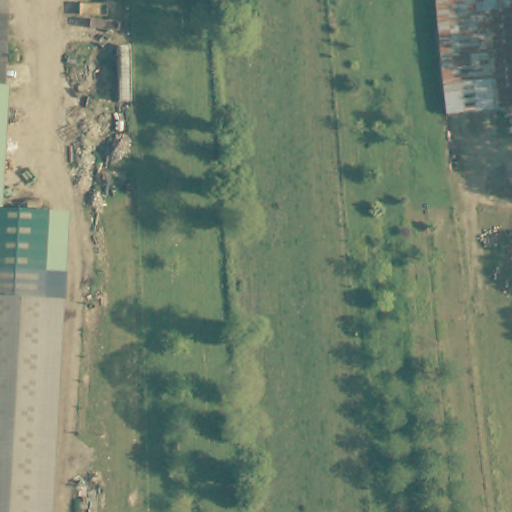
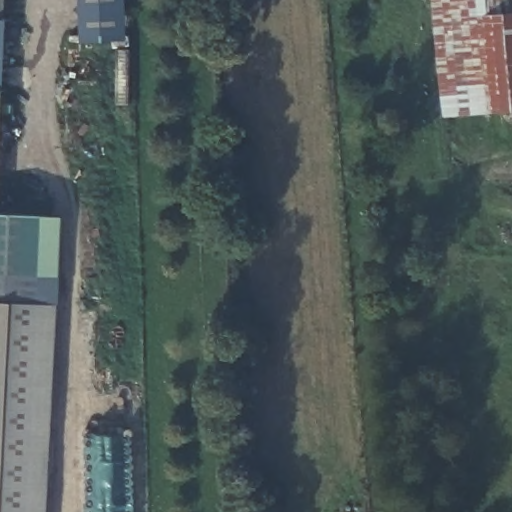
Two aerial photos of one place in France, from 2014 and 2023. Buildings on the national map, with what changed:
unchanged [(4,85),(0,85),(0,0),(6,0),(4,85)]
new [(130,33),(84,35),(83,0),(130,0),(130,33)]
unchanged [(504,110),(453,115),(440,0),(512,0),(512,109),(504,110)]
unchanged [(0,177),(0,85),(4,85),(0,177)]
unchanged [(33,307),(0,305),(0,212),(67,215),(60,308),(43,307),(33,307)]
unchanged [(43,307),(32,512),(0,512),(0,305),(33,307),(43,307)]
unchanged [(60,308),(50,512),(32,512),(43,307),(60,308)]

